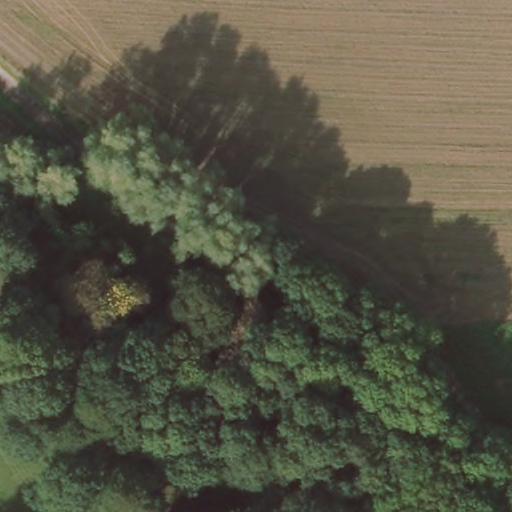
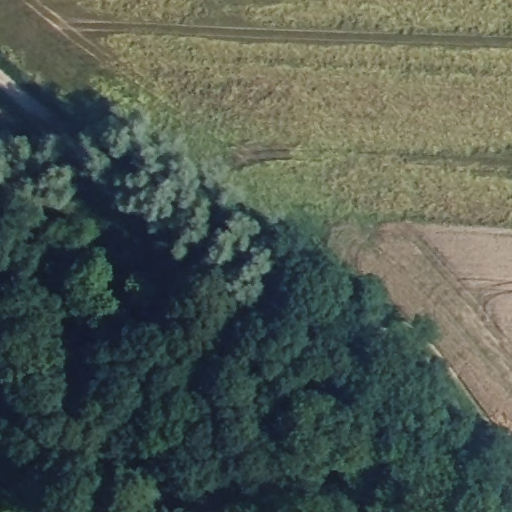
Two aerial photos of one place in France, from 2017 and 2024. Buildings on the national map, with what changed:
unchanged [(193,300),(168,335),(148,321),(173,286),(193,300)]

